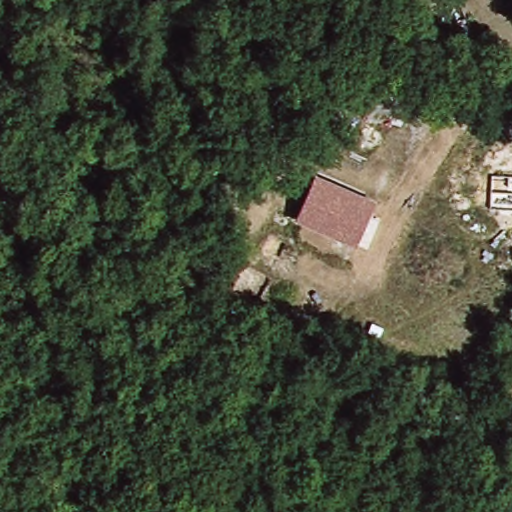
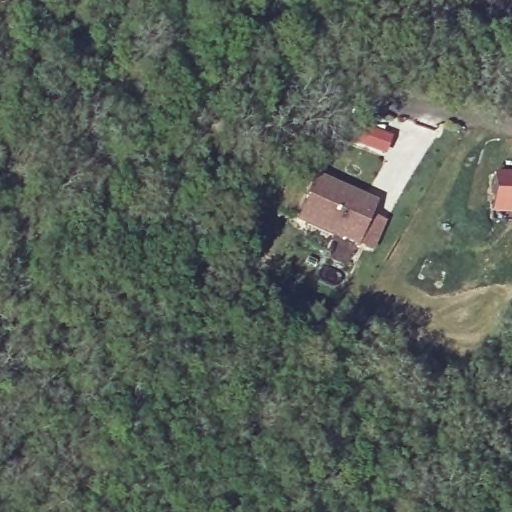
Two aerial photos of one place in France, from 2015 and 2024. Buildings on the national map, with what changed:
new [(492,174),(512,174),(512,215),(489,214),(492,174)]
unchanged [(317,175),(377,200),(359,246),(296,222),(317,175)]

